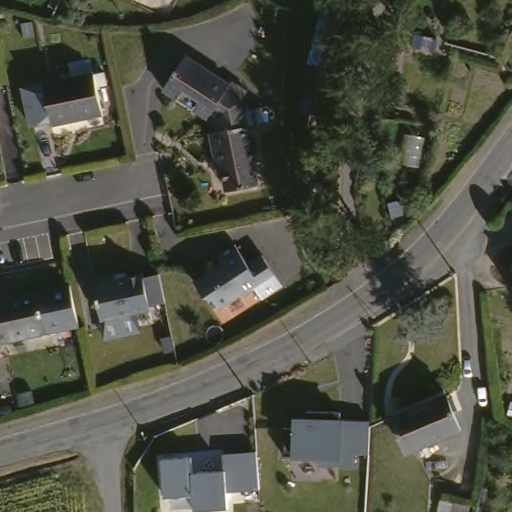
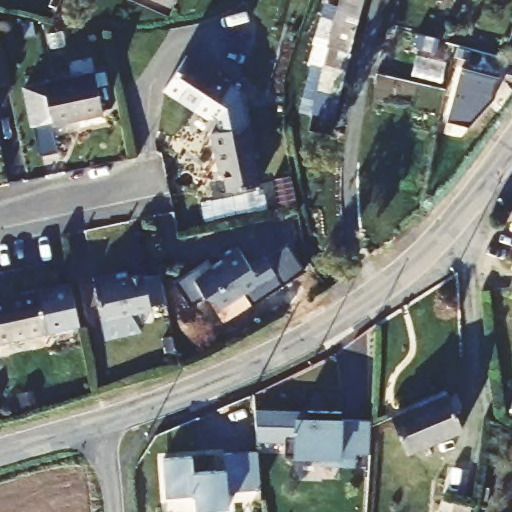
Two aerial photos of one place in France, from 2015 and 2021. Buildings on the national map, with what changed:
unchanged [(166,2),(161,0),(167,0),(166,2)]
new [(416,33),(439,39),(435,52),(413,47),(416,33)]
unchanged [(234,192),(221,132),(230,131),(226,113),(225,105),(220,102),(214,111),(170,82),(195,48),(239,78),(234,85),(243,92),(248,107),(253,124),(250,125),(262,186),(234,192)]
new [(463,68),(501,79),(496,99),(469,127),(447,121),(463,68)]
unchanged [(102,72),(111,113),(60,124),(60,122),(40,126),(31,88),(102,72)]
unchanged [(257,295),(256,293),(243,298),(235,297),(214,305),(203,301),(195,279),(225,267),(224,257),(246,249),(250,259),(265,254),(277,286),(257,295)]
unchanged [(141,307),(143,317),(104,322),(96,276),(116,272),(119,281),(140,277),(141,284),(158,280),(162,302),(141,307)]
unchanged [(5,341),(0,319),(0,303),(44,295),(51,332),(5,341)]
unchanged [(391,426),(440,399),(457,431),(408,456),(391,426)]
unchanged [(298,424),(306,425),(310,408),(343,411),(342,421),(371,422),(370,452),(354,451),(353,465),(325,464),(325,454),(296,453),(298,424)]
unchanged [(191,460),(194,473),(224,470),(224,457),(257,454),(260,487),(225,491),(226,505),(190,509),(188,495),(165,497),(164,461),(191,460)]
unchanged [(441,512),(442,504),(476,507),(475,512),(441,512)]

